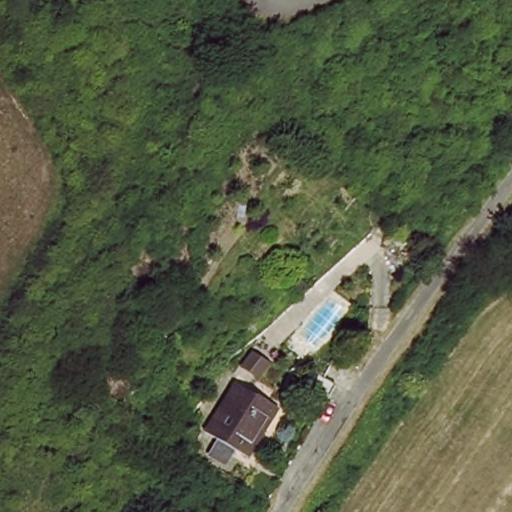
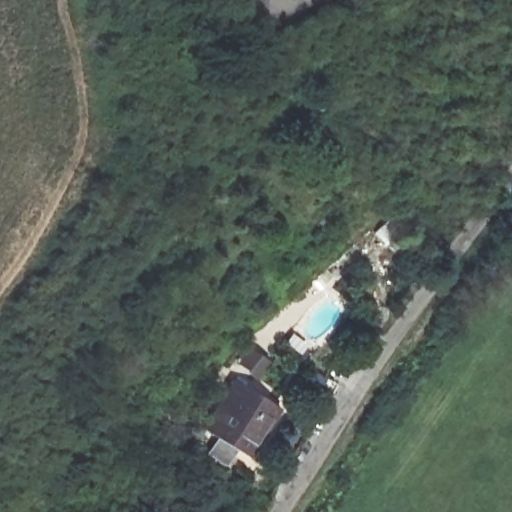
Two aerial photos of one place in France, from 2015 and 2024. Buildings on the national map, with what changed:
unchanged [(304,368),(334,389),(317,419),(285,399),(304,368)]
unchanged [(237,376),(278,405),(242,459),(200,428),(237,376)]

